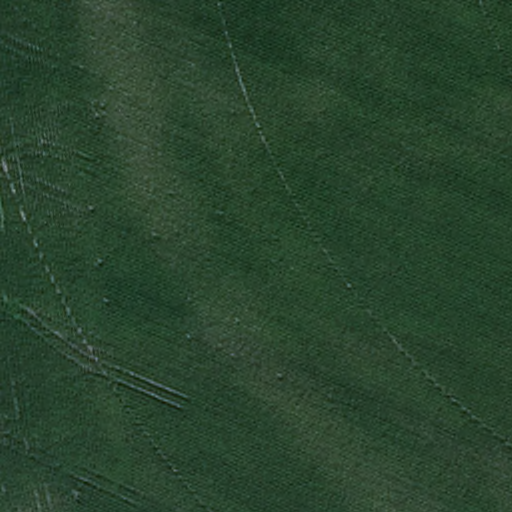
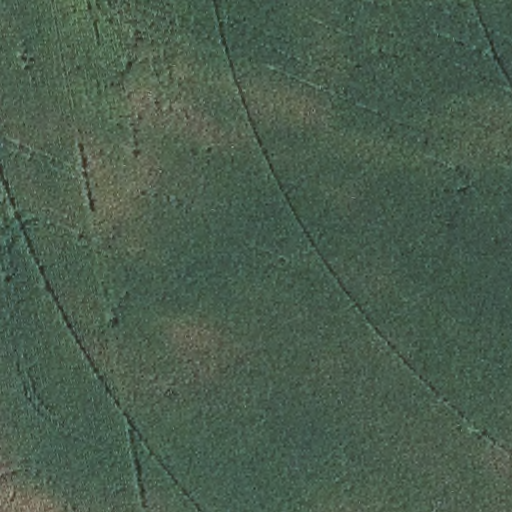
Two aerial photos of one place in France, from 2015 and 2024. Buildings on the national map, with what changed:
[]

